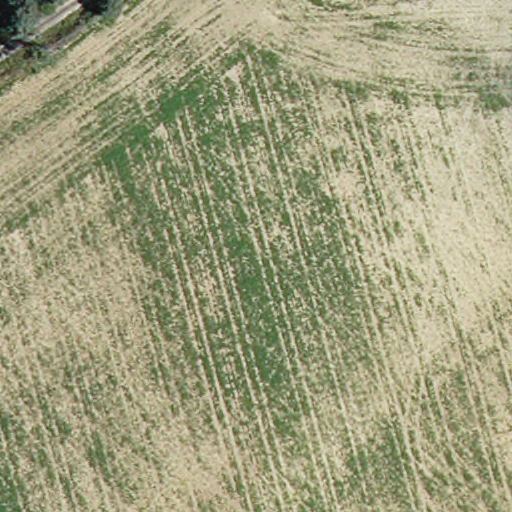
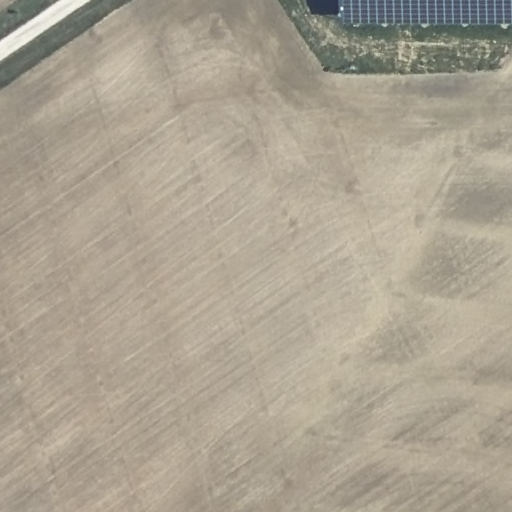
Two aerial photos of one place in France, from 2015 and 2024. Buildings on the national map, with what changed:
new [(344,0),(512,0),(512,27),(344,27),(344,0)]

